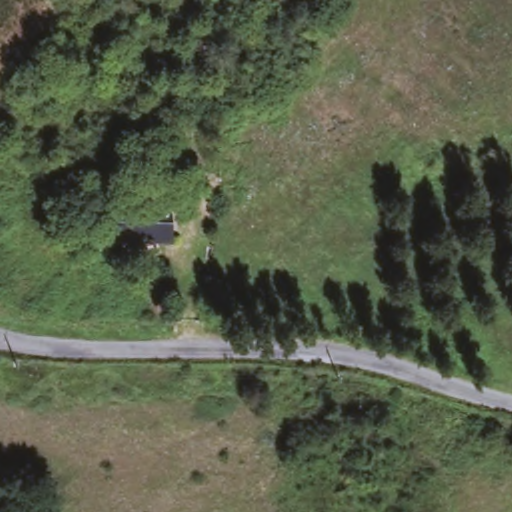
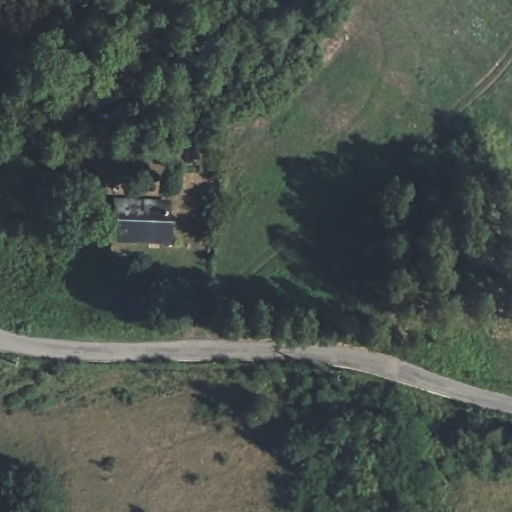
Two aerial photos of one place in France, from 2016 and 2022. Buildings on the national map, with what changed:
unchanged [(151,240),(135,238),(135,195),(180,196),(180,206),(180,240),(151,240)]

